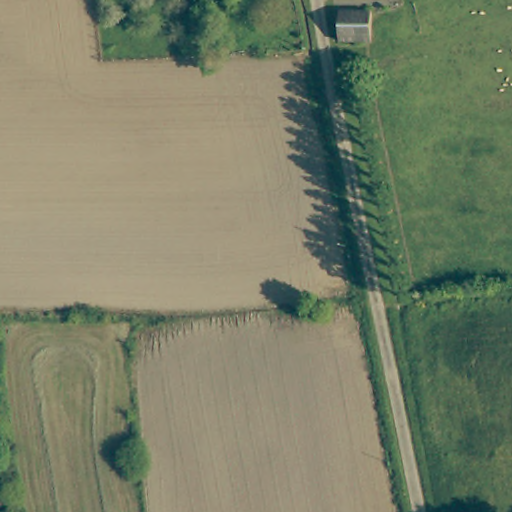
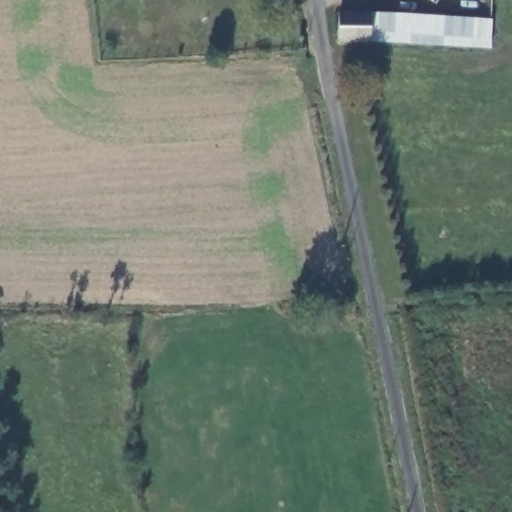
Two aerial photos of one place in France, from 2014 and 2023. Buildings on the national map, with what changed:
new [(339,11),(373,11),(493,18),(491,48),(370,42),(338,42),(339,11)]

